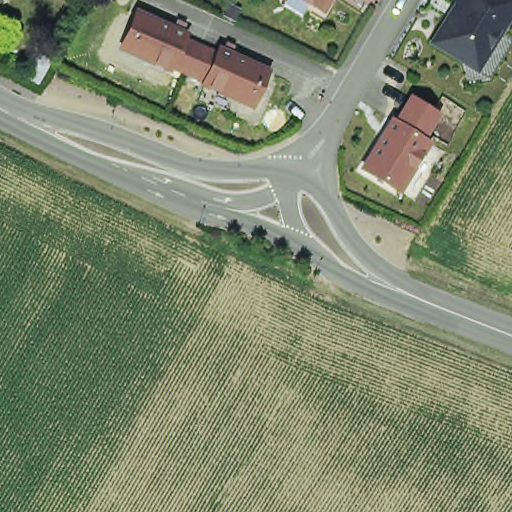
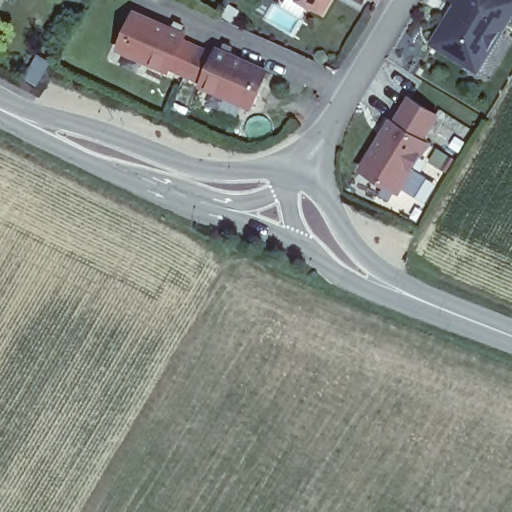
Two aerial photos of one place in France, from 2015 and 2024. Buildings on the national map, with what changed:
unchanged [(238,22),(222,14),(228,0),(243,8),(238,22)]
unchanged [(301,0),(335,0),(327,14),(301,0)]
unchanged [(428,42),(450,0),(512,0),(512,18),(479,73),(428,42)]
unchanged [(252,109),(197,86),(198,83),(171,70),(170,74),(115,51),(132,8),(188,33),(187,36),(212,50),(216,45),(269,69),(252,109)]
unchanged [(356,170),(391,115),(395,117),(408,94),(441,113),(430,137),(433,140),(401,195),(356,170)]

